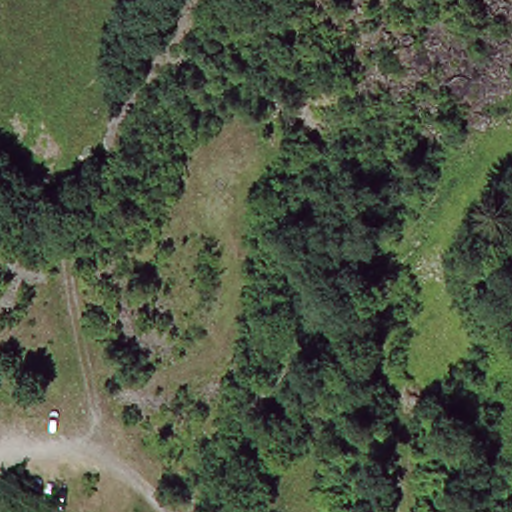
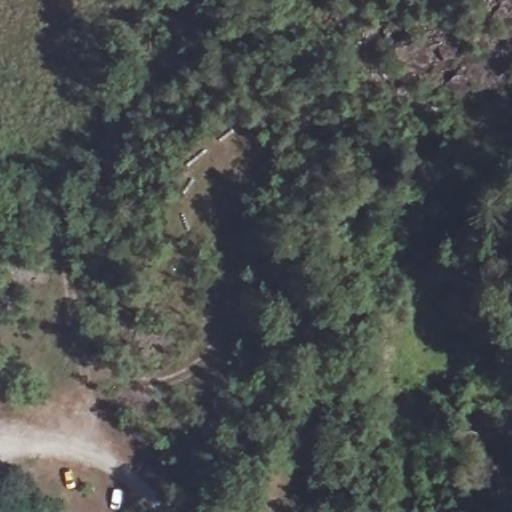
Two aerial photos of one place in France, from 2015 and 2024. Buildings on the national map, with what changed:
[]

